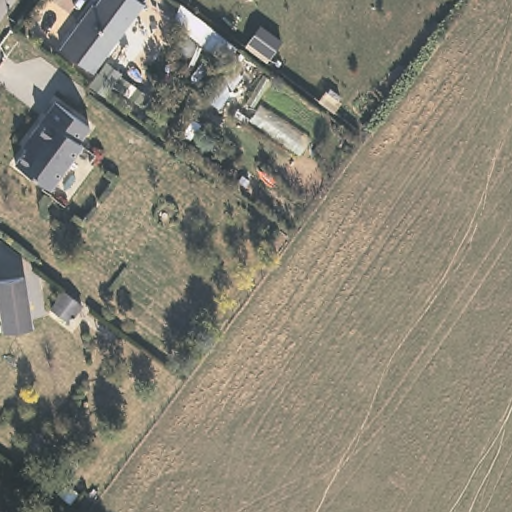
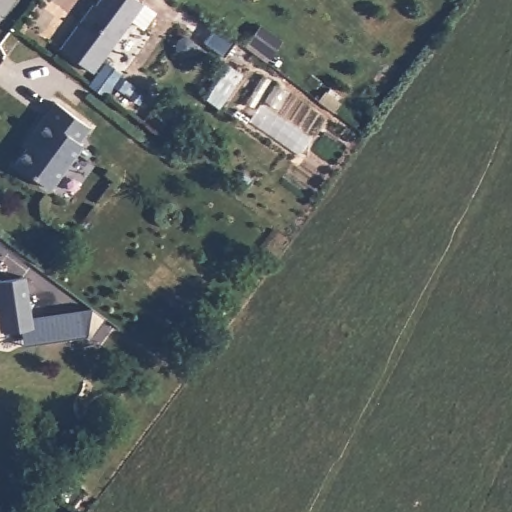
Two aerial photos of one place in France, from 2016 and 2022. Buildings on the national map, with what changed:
unchanged [(91,60),(60,36),(79,11),(86,0),(136,0),(91,60)]
unchanged [(35,123),(31,120),(54,89),(88,115),(77,130),(81,132),(47,176),(14,151),(35,123)]
unchanged [(23,275),(32,326),(6,331),(2,313),(0,313),(0,279),(23,275)]
new [(19,328),(32,326),(31,316),(93,308),(106,319),(88,339),(83,336),(22,346),(19,328)]

